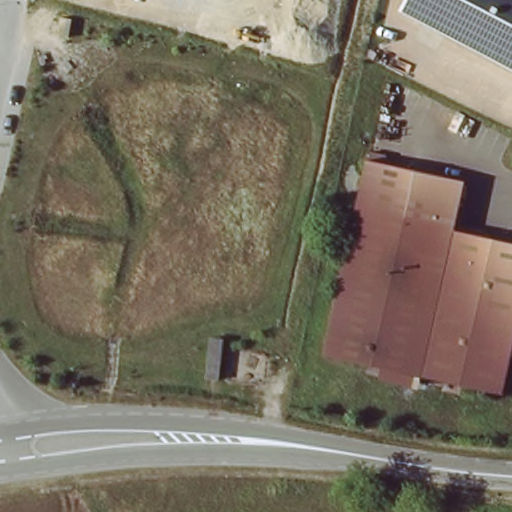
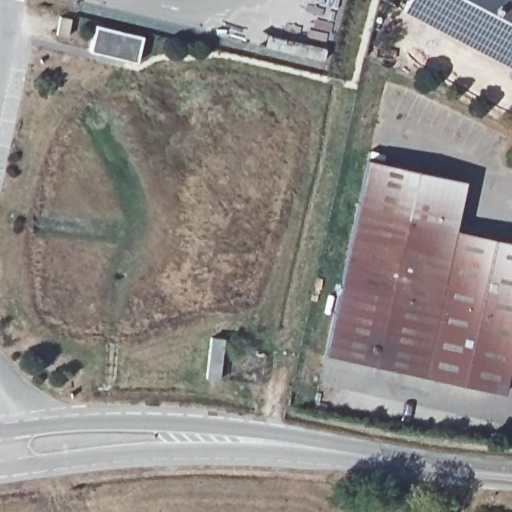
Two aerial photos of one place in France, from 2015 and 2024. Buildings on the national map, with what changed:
unchanged [(512,68),(398,7),(402,0),(512,0),(512,68)]
new [(147,35),(142,64),(93,54),(100,24),(147,35)]
unchanged [(456,233),(512,245),(512,371),(507,392),(426,377),(331,359),(370,164),(467,184),(456,233)]

